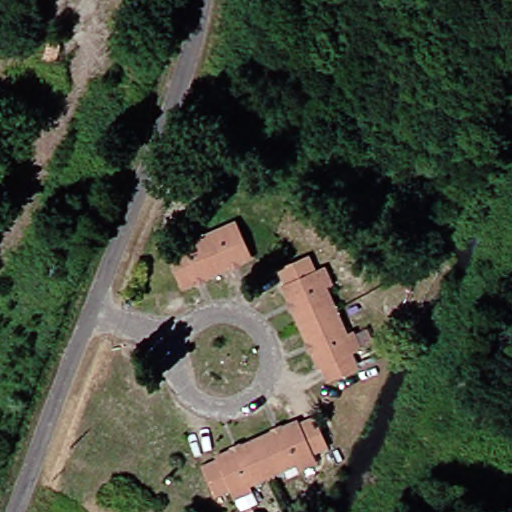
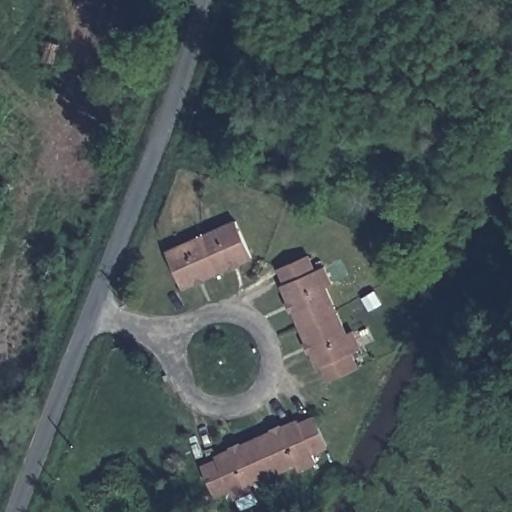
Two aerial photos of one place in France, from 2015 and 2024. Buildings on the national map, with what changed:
unchanged [(192,235),(227,220),(242,257),(208,271),(192,235)]
unchanged [(173,286),(159,250),(192,235),(208,271),(173,286)]
unchanged [(278,287),(282,285),(274,267),(304,254),(311,267),(319,263),(328,282),(319,287),(328,306),(294,323),(278,287)]
unchanged [(328,306),(339,332),(348,329),(356,348),(348,351),(354,364),(324,376),(318,363),(313,365),(294,323),(328,306)]
unchanged [(287,416),(290,421),(307,414),(320,446),(305,453),(307,461),(289,470),(285,462),(260,473),(244,435),(287,416)]
unchanged [(260,473),(243,480),(246,489),(225,499),(221,490),(208,495),(193,463),(208,456),(207,451),(244,435),(260,473)]

